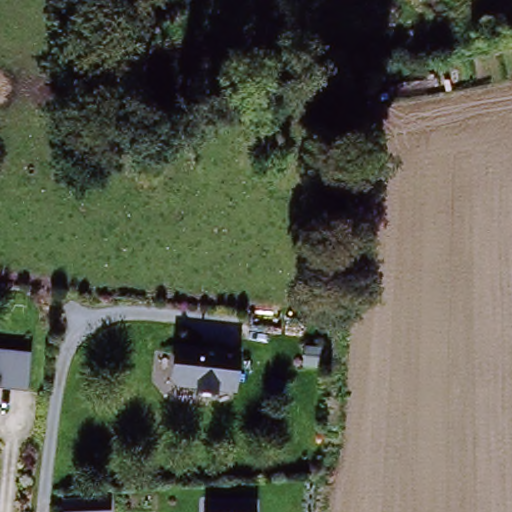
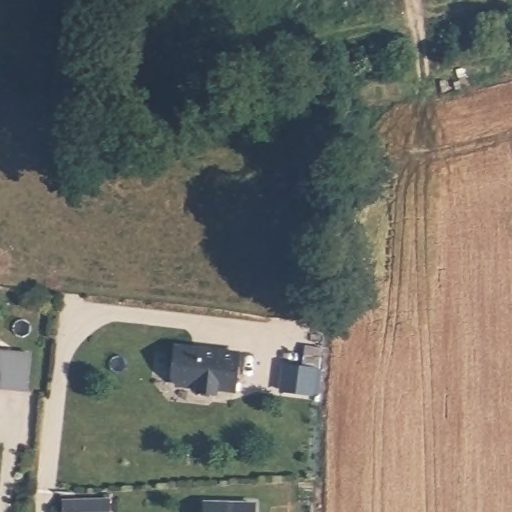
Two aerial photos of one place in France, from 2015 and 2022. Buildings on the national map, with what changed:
unchanged [(173,347),(233,352),(229,390),(212,387),(212,392),(202,392),(201,390),(198,388),(194,388),(195,383),(174,382),(170,376),(173,347)]
unchanged [(32,353),(30,392),(0,390),(0,351),(32,353)]
unchanged [(106,502),(106,512),(61,512),(62,503),(106,502)]
unchanged [(204,505),(253,506),(252,512),(203,512),(204,505)]

